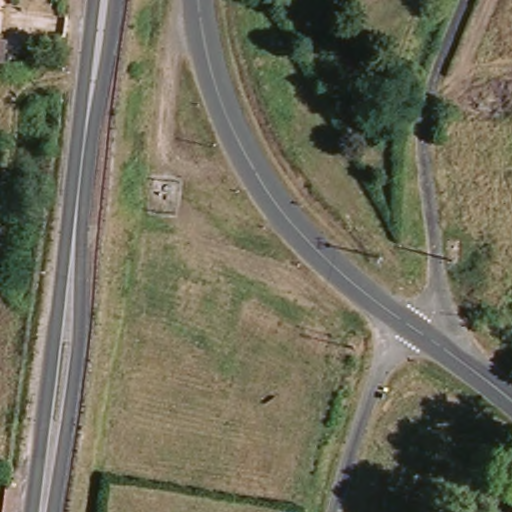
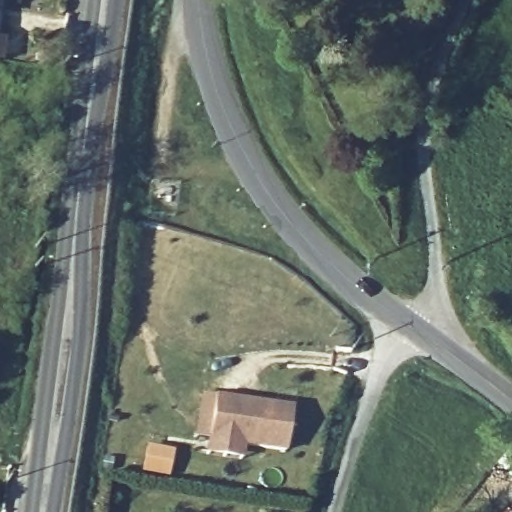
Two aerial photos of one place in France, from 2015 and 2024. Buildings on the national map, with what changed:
new [(286,454),(245,448),(244,461),(205,455),(206,439),(195,439),(201,394),(216,395),(293,407),(286,454)]
unchanged [(512,510),(512,512),(510,512),(512,510)]

